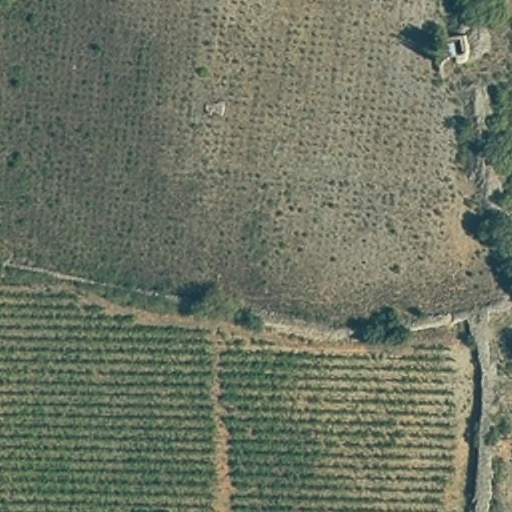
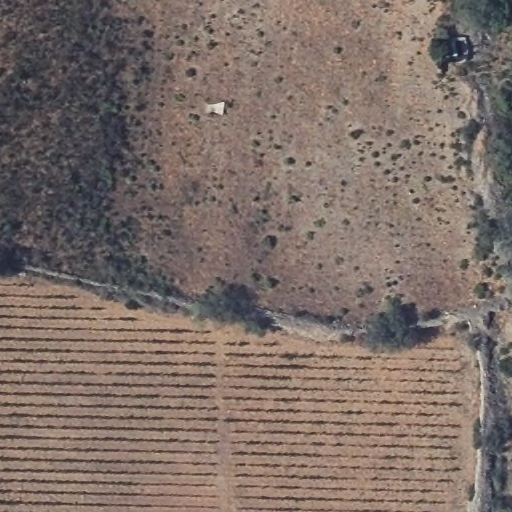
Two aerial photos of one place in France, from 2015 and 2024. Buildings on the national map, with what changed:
unchanged [(444,53),(440,36),(461,31),(465,50),(444,53)]

